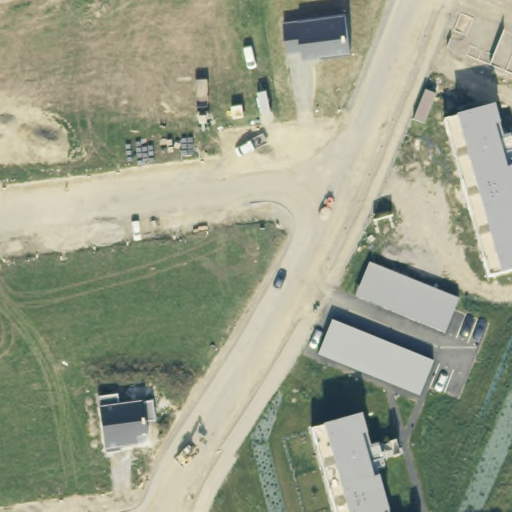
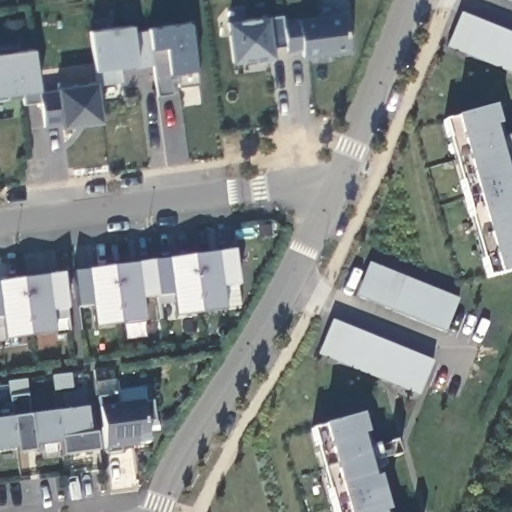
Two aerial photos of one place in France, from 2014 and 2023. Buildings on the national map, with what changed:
unchanged [(507,0),(512,0),(512,2),(507,0)]
unchanged [(446,47),(460,12),(512,34),(512,75),(446,47)]
unchanged [(303,60),(302,52),(289,55),(284,22),(297,21),(345,15),(352,55),(303,60)]
unchanged [(268,17),(282,16),(284,22),(287,45),(272,47),(273,57),(233,62),(227,22),(268,17)]
new [(196,69),(199,85),(179,87),(179,82),(171,84),(172,94),(157,96),(151,50),(148,29),(189,24),(196,69)]
new [(152,66),(136,68),(135,66),(119,68),(121,82),(96,86),(96,82),(89,32),(131,26),(132,34),(147,31),(152,66)]
new [(0,95),(0,54),(35,50),(40,90),(24,92),(0,95)]
new [(24,92),(40,90),(39,92),(57,92),(57,87),(96,82),(96,86),(102,122),(62,129),(45,129),(39,102),(24,104),(24,92)]
unchanged [(442,122),(455,117),(493,108),(498,126),(502,137),(511,136),(512,139),(512,160),(508,162),(511,171),(512,174),(512,271),(498,274),(486,278),(442,122)]
new [(225,310),(177,317),(170,261),(218,254),(225,310)]
new [(157,302),(137,305),(140,318),(118,321),(111,264),(151,259),(157,302)]
unchanged [(355,297),(369,262),(458,299),(445,333),(355,297)]
new [(118,321),(94,324),(92,311),(76,313),(71,270),(111,264),(118,321)]
new [(67,314),(47,317),(49,330),(28,333),(21,276),(61,271),(67,314)]
new [(4,336),(2,323),(0,323),(0,279),(21,276),(28,333),(4,336)]
unchanged [(318,356),(332,321),(433,362),(419,397),(318,356)]
new [(49,378),(59,377),(67,376),(69,391),(61,392),(51,393),(49,378)]
new [(53,412),(57,445),(13,451),(9,418),(6,396),(5,384),(23,382),(25,393),(27,416),(53,412)]
unchanged [(97,398),(116,396),(117,404),(154,400),(157,421),(146,423),(149,445),(106,452),(97,398)]
new [(86,407),(92,455),(60,458),(57,445),(53,412),(86,407)]
unchanged [(323,426),(360,417),(367,435),(371,448),(377,446),(383,467),(376,470),(378,478),(388,512),(334,512),(310,430),(323,426)]
new [(13,451),(14,451),(0,452),(0,419),(9,418),(13,451)]

